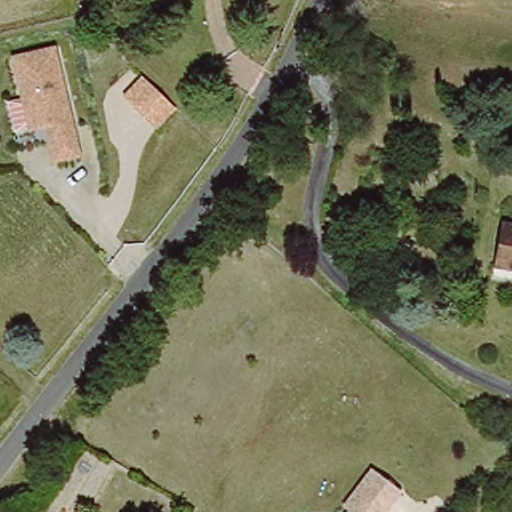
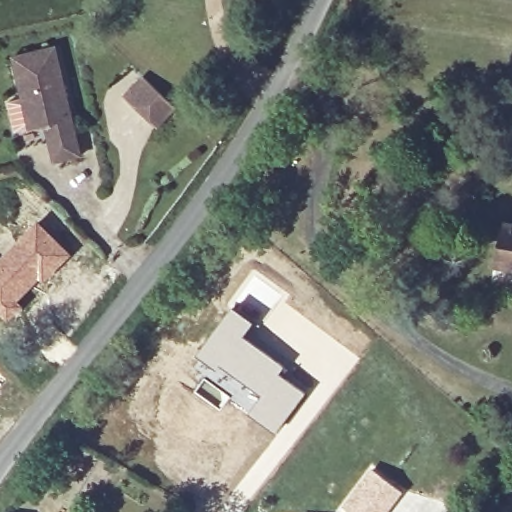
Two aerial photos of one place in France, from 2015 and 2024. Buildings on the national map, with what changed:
unchanged [(57,44),(82,158),(51,164),(44,125),(26,130),(10,54),(57,44)]
unchanged [(142,73),(177,107),(157,126),(122,94),(142,73)]
new [(37,220),(71,254),(42,282),(39,280),(19,300),(23,305),(7,321),(0,316),(0,256),(37,220)]
unchanged [(512,226),(512,272),(493,270),(497,241),(501,225),(512,226)]
new [(232,306),(254,322),(245,335),(286,366),(281,372),(307,392),(276,433),(229,397),(240,384),(219,368),(217,370),(196,353),(232,306)]
unchanged [(384,512),(345,512),(347,509),(340,502),(368,466),(402,489),(384,512)]

